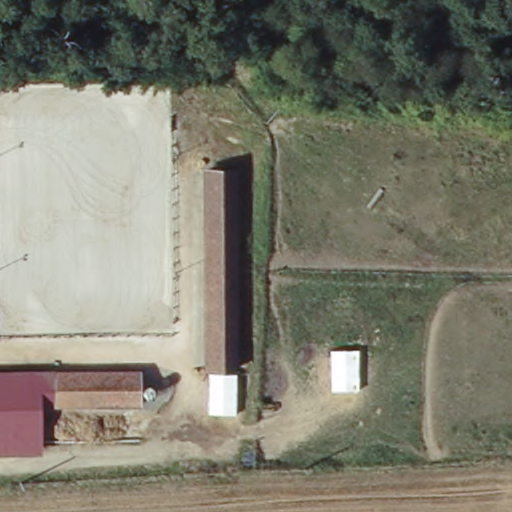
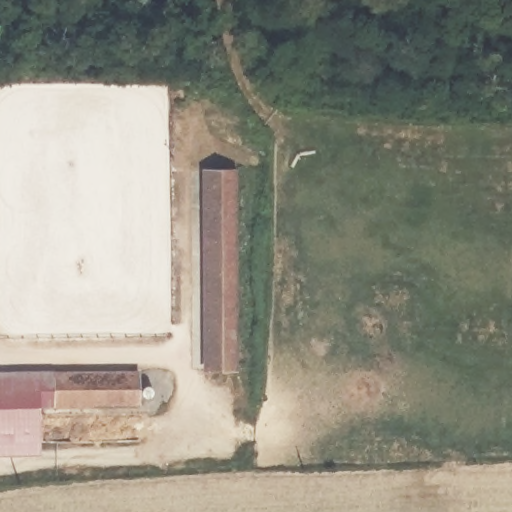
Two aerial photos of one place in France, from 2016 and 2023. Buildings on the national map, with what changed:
unchanged [(231,173),(230,370),(204,370),(205,173),(231,173)]
unchanged [(154,373),(154,407),(42,410),(42,376),(154,373)]
unchanged [(42,410),(44,451),(0,452),(0,378),(42,376),(42,410)]

